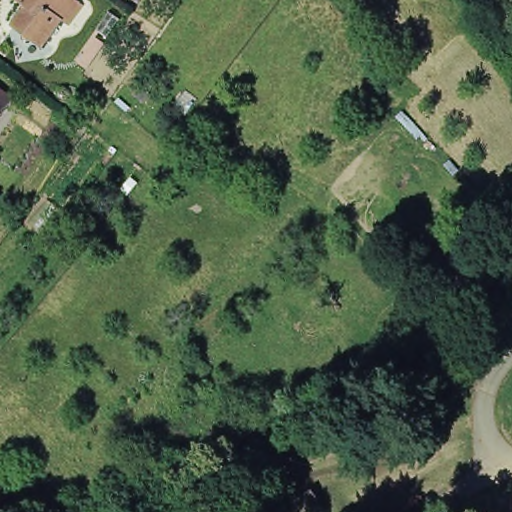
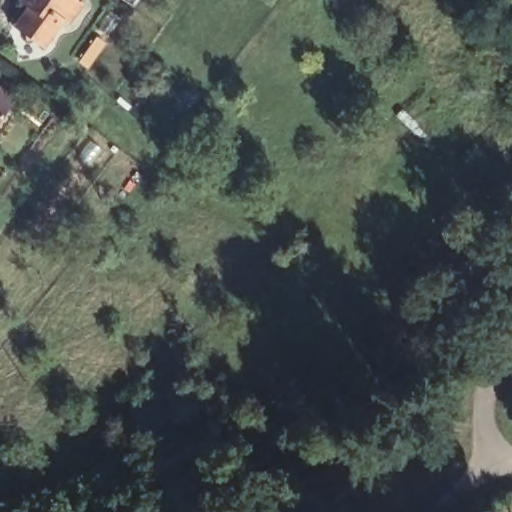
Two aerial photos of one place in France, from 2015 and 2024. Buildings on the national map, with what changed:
unchanged [(16,36),(16,30),(6,22),(11,15),(19,2),(16,0),(75,0),(60,20),(54,16),(39,37),(35,44),(23,35),(16,36)]
unchanged [(0,122),(0,93),(14,102),(0,122)]
unchanged [(327,512),(319,512),(310,495),(336,481),(348,500),(327,512)]

